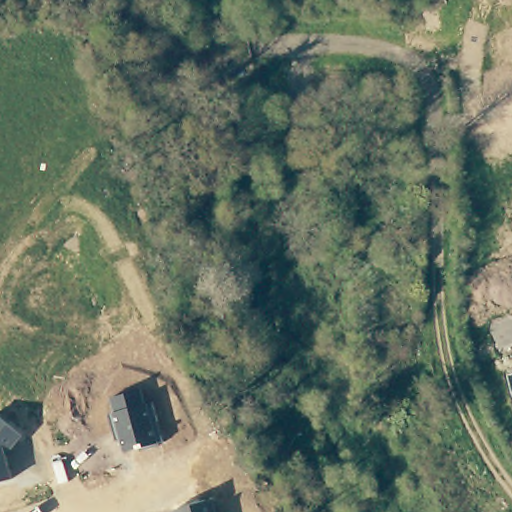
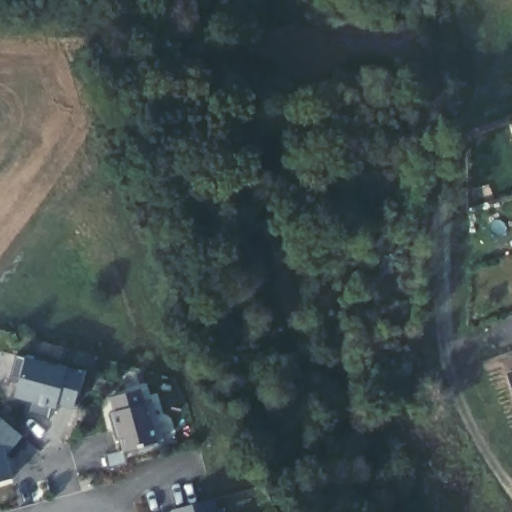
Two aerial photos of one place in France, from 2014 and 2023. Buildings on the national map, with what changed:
new [(14,355),(81,373),(72,406),(58,403),(51,405),(47,420),(27,415),(30,402),(13,397),(18,379),(8,377),(14,355)]
unchanged [(507,374),(512,373),(512,388),(507,374)]
unchanged [(111,397),(144,388),(159,444),(124,452),(111,397)]
unchanged [(6,458),(11,480),(0,483),(0,417),(22,435),(6,458)]
unchanged [(212,500),(216,512),(173,512),(212,500)]

